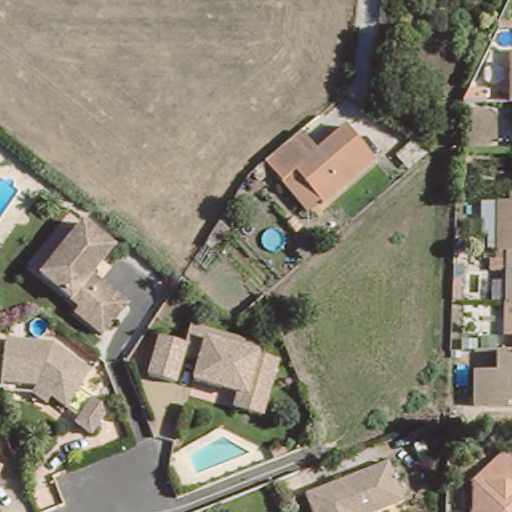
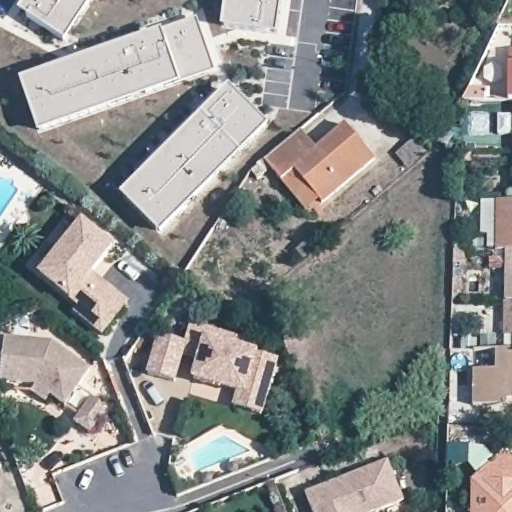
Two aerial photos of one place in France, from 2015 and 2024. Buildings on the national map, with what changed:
new [(65,44),(20,12),(28,0),(94,0),(65,44)]
new [(221,27),(225,0),(282,0),(277,35),(221,27)]
new [(180,85),(39,132),(20,81),(160,32),(197,21),(215,71),(180,85)]
unchanged [(509,102),(510,52),(512,53),(512,102),(509,102)]
new [(160,236),(118,195),(229,84),(269,125),(160,236)]
unchanged [(282,177),(264,156),(295,130),(300,125),(317,145),(345,121),(375,155),(322,200),(320,196),(307,207),(282,177)]
unchanged [(506,252),(496,252),(497,202),(512,203),(512,252),(506,252)]
unchanged [(122,303),(97,333),(71,312),(75,306),(36,274),(77,223),(107,247),(86,274),(122,303)]
unchanged [(505,302),(506,252),(512,252),(512,302),(505,302)]
unchanged [(503,336),(504,305),(512,305),(512,336),(503,336)]
unchanged [(199,361),(182,356),(185,345),(190,325),(259,345),(257,355),(205,340),(199,361)]
unchanged [(182,356),(174,383),(149,376),(160,337),(185,345),(182,356)]
unchanged [(32,386),(0,382),(0,349),(1,339),(47,343),(85,370),(60,406),(46,396),(42,403),(27,392),(32,386)]
unchanged [(232,407),(237,392),(194,380),(199,361),(205,340),(257,355),(277,360),(267,396),(261,415),(232,407)]
unchanged [(473,406),(474,371),(496,371),(496,352),(512,352),(512,407),(507,407),(473,406)]
unchanged [(91,434),(75,422),(92,398),(101,405),(105,415),(91,434)]
unchanged [(286,454),(275,458),(270,448),(282,443),(286,454)]
unchanged [(336,475),(347,471),(382,457),(399,497),(360,512),(310,512),(301,490),(336,475)]
unchanged [(0,468),(0,465),(1,465),(0,468)]
unchanged [(512,475),(512,512),(474,512),(477,473),(512,475)]

